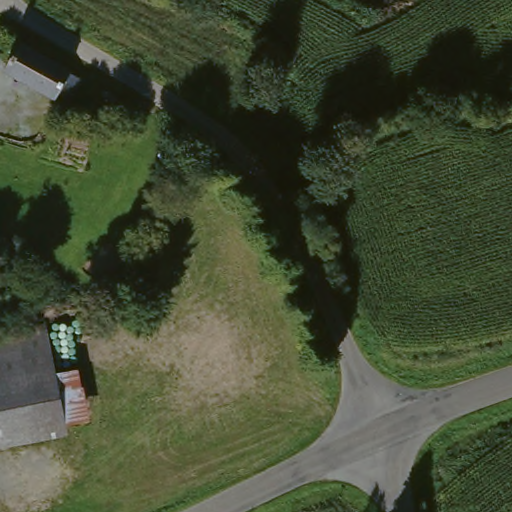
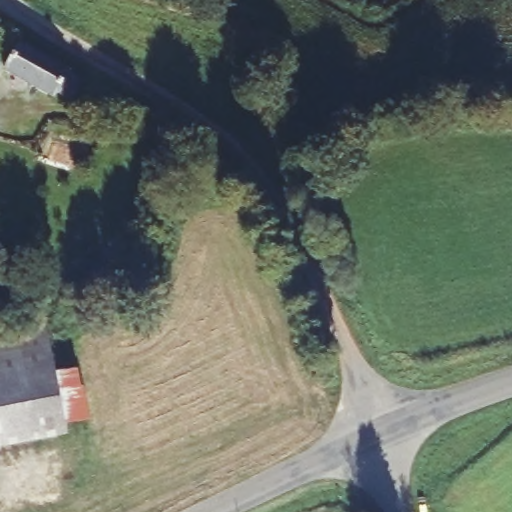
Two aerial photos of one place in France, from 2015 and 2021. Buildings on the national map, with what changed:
unchanged [(16,44),(83,79),(70,102),(59,96),(56,103),(0,73),(16,44)]
unchanged [(38,335),(51,381),(71,375),(81,406),(86,423),(0,447),(0,346),(38,335)]

